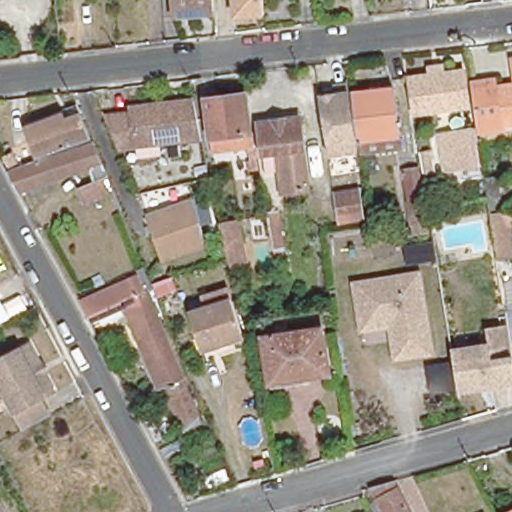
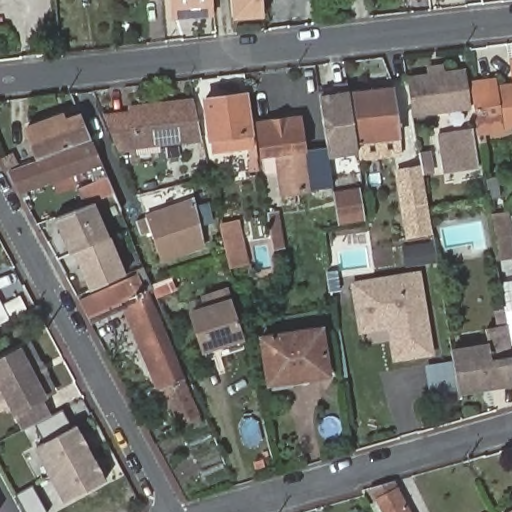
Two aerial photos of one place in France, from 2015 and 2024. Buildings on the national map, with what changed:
unchanged [(168,16),(166,0),(206,0),(207,12),(168,16)]
new [(233,19),(231,0),(262,0),(264,17),(233,19)]
unchanged [(467,102),(414,110),(409,75),(428,72),(427,62),(436,61),(438,71),(462,67),(467,102)]
unchanged [(466,66),(490,62),(491,76),(512,72),(512,118),(499,121),(501,132),(488,135),(484,112),(474,115),(466,66)]
unchanged [(347,91),(359,176),(330,180),(318,98),(333,96),(332,91),(347,89),(347,91)]
unchanged [(200,100),(238,95),(245,147),(234,148),(233,137),(214,139),(215,151),(206,152),(200,100)]
unchanged [(350,100),(392,95),(398,142),(366,147),(367,160),(359,161),(350,100)]
unchanged [(126,108),(158,105),(189,101),(197,137),(110,147),(97,118),(128,115),(126,108)]
unchanged [(22,126),(63,113),(65,119),(81,114),(90,137),(33,156),(22,126)]
unchanged [(252,123),(294,118),(298,151),(303,194),(276,197),(271,155),(256,157),(252,123)]
unchanged [(442,182),(441,172),(435,134),(471,130),(475,168),(462,170),(464,179),(442,182)]
unchanged [(91,139),(100,160),(111,189),(81,201),(74,185),(91,179),(86,165),(20,187),(8,167),(91,139)]
new [(420,152),(431,150),(435,172),(423,175),(428,204),(433,234),(419,236),(405,238),(401,208),(394,169),(408,167),(422,165),(420,152)]
unchanged [(484,180),(497,178),(500,211),(511,210),(512,217),(512,260),(494,262),(484,180)]
unchanged [(326,187),(328,196),(362,192),(366,224),(336,229),(333,216),(316,217),(314,192),(313,190),(326,187)]
new [(127,272),(90,291),(52,218),(95,201),(127,272)]
unchanged [(195,205),(205,252),(164,266),(148,221),(195,205)]
unchanged [(241,220),(251,263),(232,267),(222,224),(241,220)]
new [(433,245),(436,261),(406,266),(404,249),(433,245)]
unchanged [(420,270),(433,358),(390,365),(386,333),(357,338),(348,281),(420,270)]
unchanged [(144,278),(151,295),(128,303),(93,317),(84,301),(144,278)]
unchanged [(187,378),(204,415),(179,427),(161,389),(133,323),(136,322),(128,303),(151,295),(187,378)]
unchanged [(227,296),(241,338),(200,351),(187,309),(227,296)]
unchanged [(0,322),(0,314),(3,321),(0,322)]
unchanged [(263,334),(322,325),(325,349),(308,352),(311,372),(269,378),(263,334)]
unchanged [(507,326),(509,336),(512,355),(512,388),(457,397),(453,367),(450,351),(489,345),(486,330),(507,326)]
unchanged [(53,417),(28,430),(0,378),(0,362),(31,346),(56,392),(43,399),(53,417)]
new [(104,478),(65,500),(35,446),(75,425),(104,478)]
new [(48,512),(24,512),(15,496),(32,486),(48,512)]
unchanged [(376,497),(398,491),(409,512),(384,512),(376,497)]

